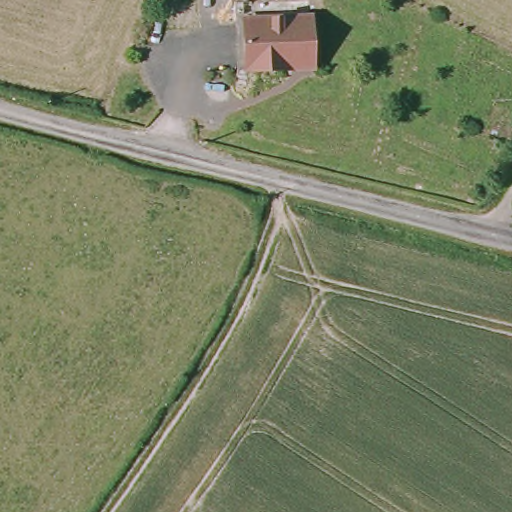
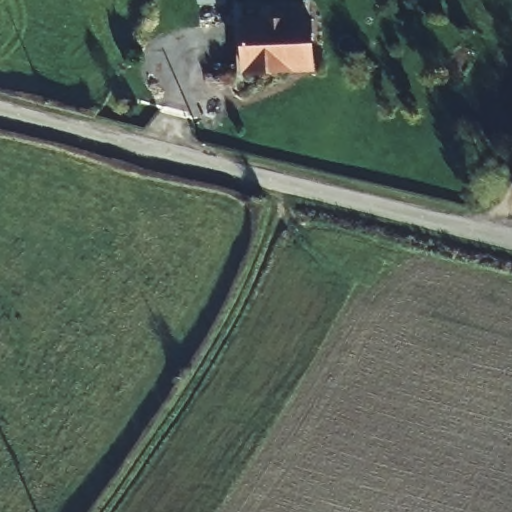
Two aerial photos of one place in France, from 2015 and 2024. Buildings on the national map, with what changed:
unchanged [(287,68),(260,70),(240,71),(237,35),(236,20),(304,15),(307,56),(307,66),(287,68)]

